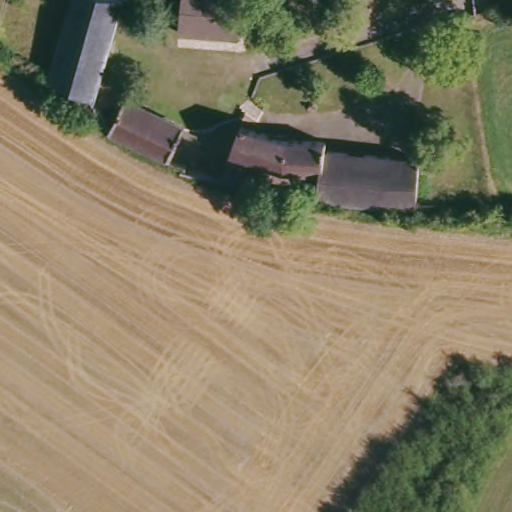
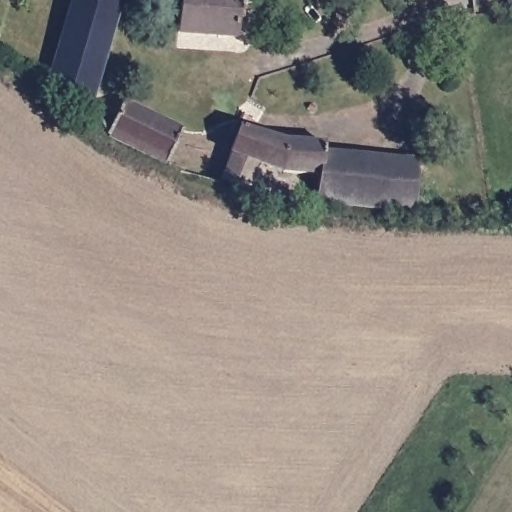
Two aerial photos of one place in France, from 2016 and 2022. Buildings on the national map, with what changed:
unchanged [(94,101),(92,94),(52,78),(69,0),(115,0),(94,101)]
unchanged [(163,0),(239,0),(240,31),(185,32),(165,33),(163,0)]
unchanged [(155,161),(92,135),(103,86),(188,119),(182,168),(155,161)]
unchanged [(391,212),(310,205),(301,202),(307,170),(262,158),(272,125),(297,133),(351,137),(352,148),(389,153),(391,212)]
unchanged [(389,153),(413,156),(415,214),(391,212),(389,153)]

